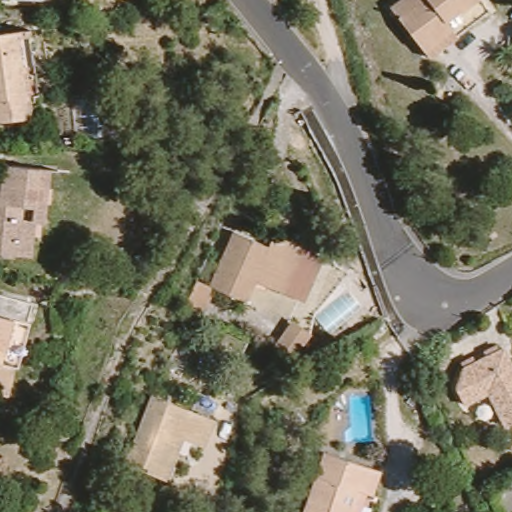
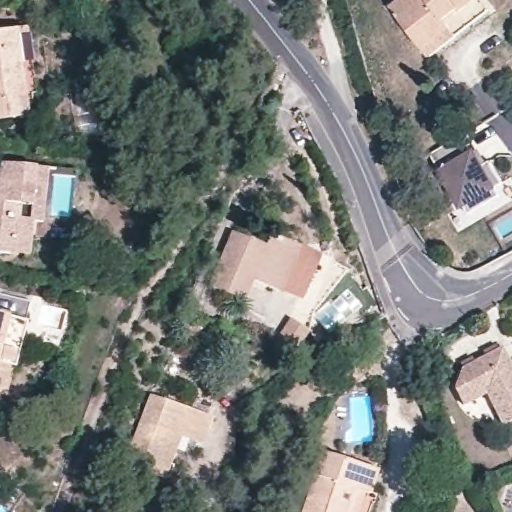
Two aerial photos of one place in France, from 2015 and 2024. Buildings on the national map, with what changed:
unchanged [(458,30),(430,50),(392,0),(468,0),(448,15),(458,30)]
unchanged [(26,29),(35,94),(24,95),(27,116),(0,120),(0,33),(15,30),(26,29)]
new [(466,133),(476,149),(478,148),(486,163),(494,158),(507,180),(499,185),(504,193),(472,211),(467,203),(465,204),(434,151),(466,133)]
unchanged [(30,163),(25,216),(19,215),(16,234),(8,234),(7,249),(0,249),(0,160),(30,163)]
unchanged [(47,164),(42,219),(32,217),(28,252),(7,249),(8,234),(16,234),(19,215),(25,216),(30,163),(47,164)]
unchanged [(208,291),(231,236),(265,251),(270,239),(299,252),(278,298),(252,285),(243,307),(214,294),(200,324),(181,315),(194,285),(208,291)]
unchanged [(18,304),(14,323),(3,368),(0,367),(0,299),(18,304)]
unchanged [(512,376),(512,424),(500,429),(487,398),(461,410),(453,393),(461,373),(501,354),(512,376)]
unchanged [(2,369),(0,376),(0,368),(2,369)]
unchanged [(215,419),(205,446),(185,438),(169,479),(128,464),(155,396),(215,419)]
unchanged [(318,478),(303,473),(312,446),(382,469),(375,489),(372,488),(364,512),(306,512),(318,478)]

